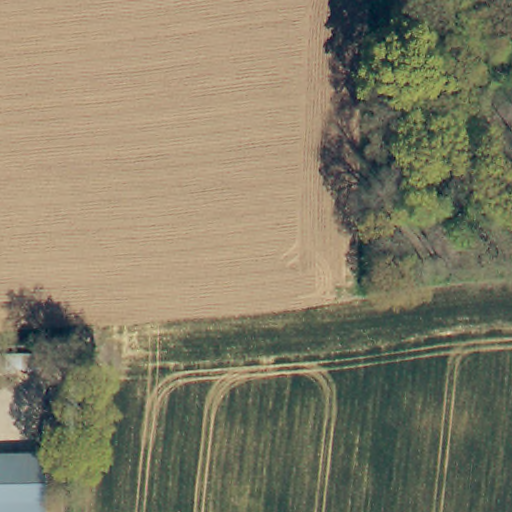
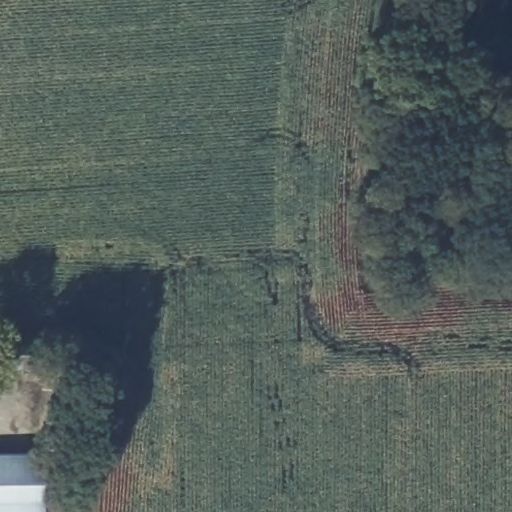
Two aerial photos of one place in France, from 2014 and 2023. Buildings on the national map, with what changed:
unchanged [(47,458),(49,512),(0,512),(0,458),(47,458)]

